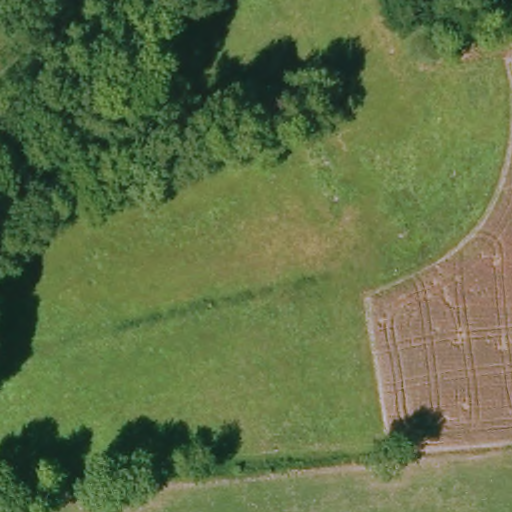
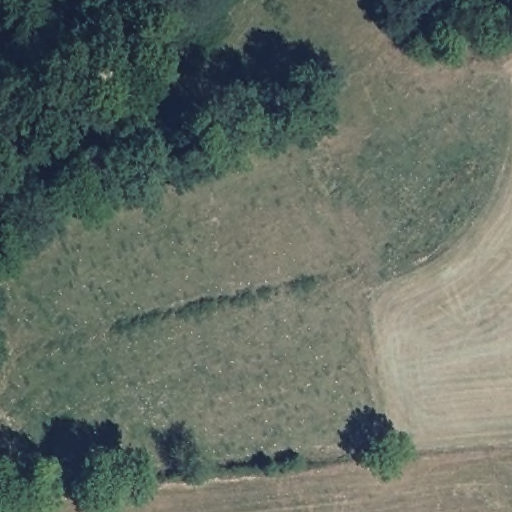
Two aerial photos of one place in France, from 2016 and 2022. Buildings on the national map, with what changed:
[]

